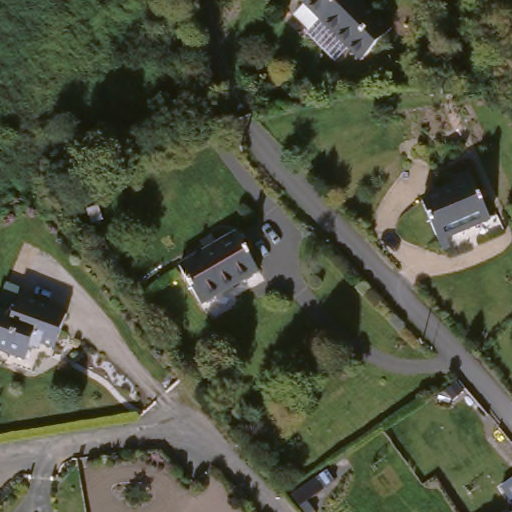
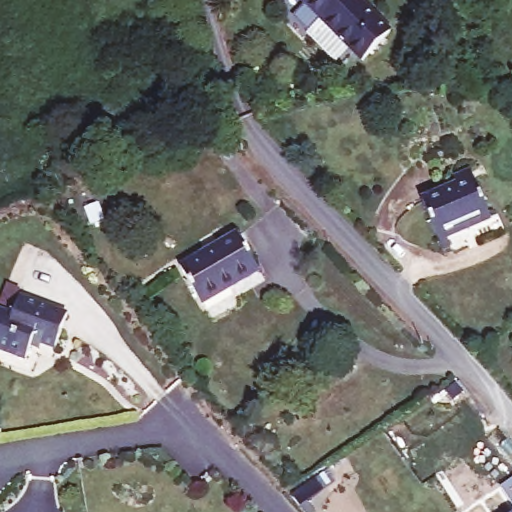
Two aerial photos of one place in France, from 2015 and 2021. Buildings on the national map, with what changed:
unchanged [(294,0),(351,0),(386,42),(352,69),(294,0)]
unchanged [(486,223),(432,245),(416,202),(470,182),(486,223)]
unchanged [(178,260),(236,236),(261,277),(201,302),(178,260)]
unchanged [(47,355),(18,344),(14,357),(0,352),(0,317),(2,317),(8,301),(59,320),(47,355)]
unchanged [(512,487),(512,510),(499,496),(512,487)]

